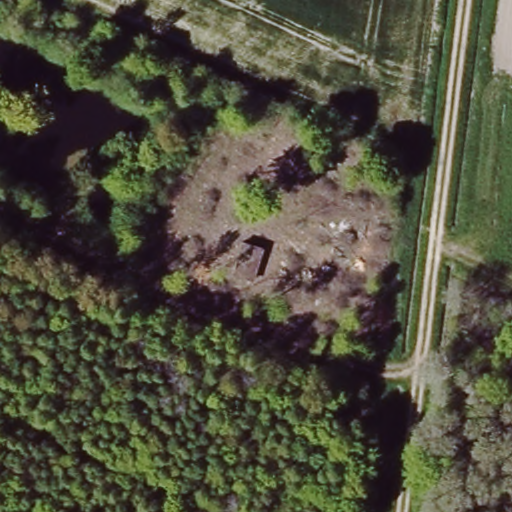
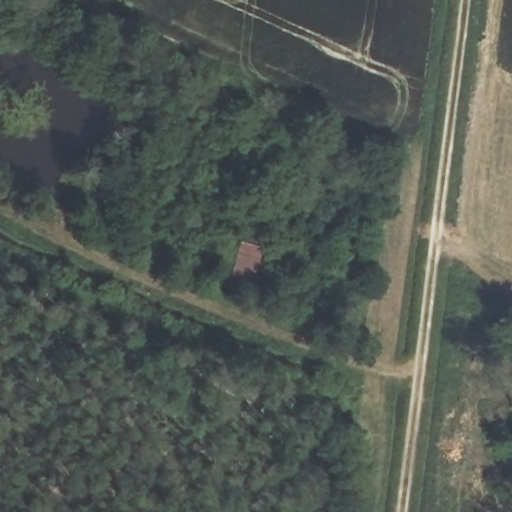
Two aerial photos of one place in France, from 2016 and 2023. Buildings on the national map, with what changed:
unchanged [(240,239),(266,247),(255,282),(228,277),(240,239)]

